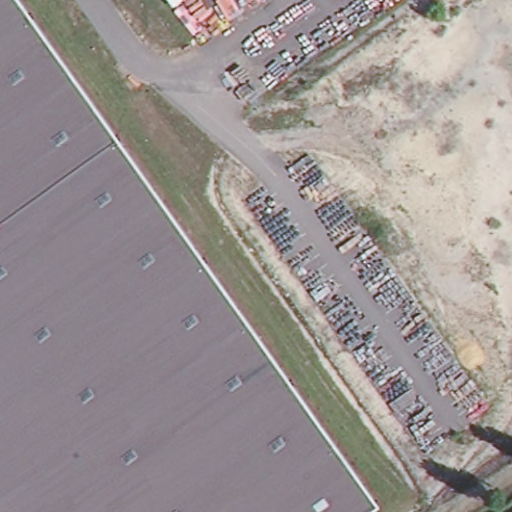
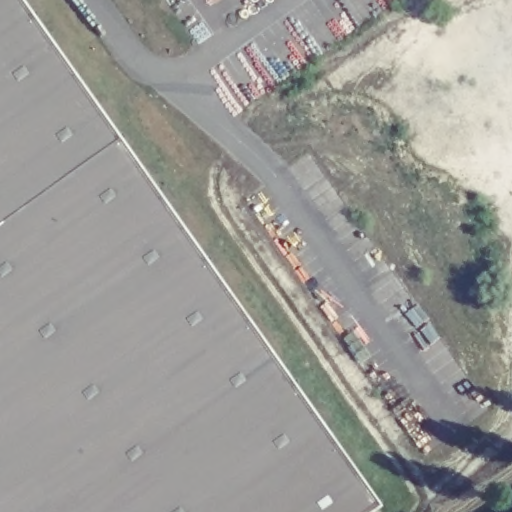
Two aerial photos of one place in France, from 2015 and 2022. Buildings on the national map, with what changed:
unchanged [(383,512),(0,512),(0,0),(22,0),(384,511),(383,512)]

